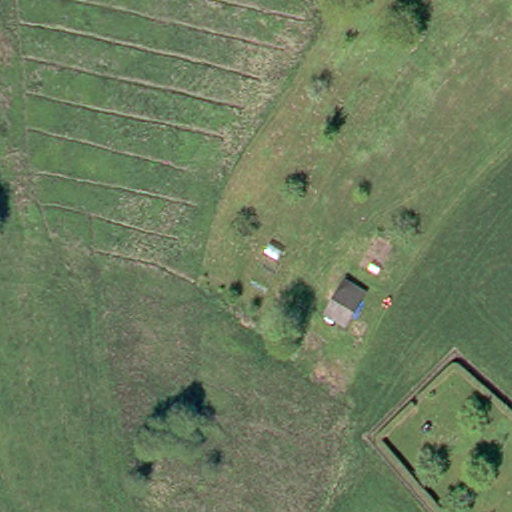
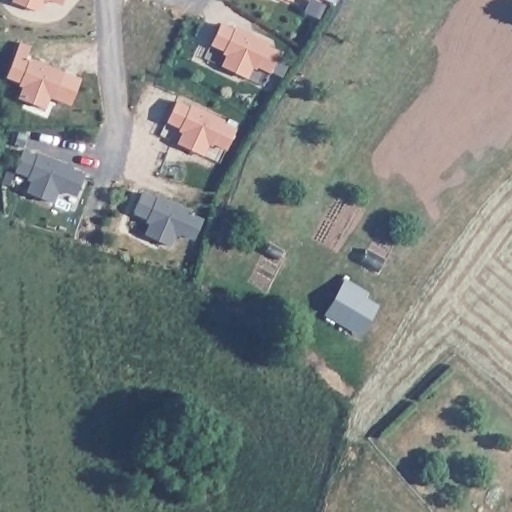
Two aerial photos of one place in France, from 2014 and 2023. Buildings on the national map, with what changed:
new [(43,0),(38,11),(9,0),(47,0),(46,2),(43,0)]
new [(54,0),(61,0),(61,2),(54,0)]
new [(235,25),(236,23),(269,37),(268,40),(278,50),(270,69),(256,63),(255,66),(229,49),(224,47),(225,44),(213,38),(221,20),(235,25)]
new [(33,46),(29,56),(64,70),(53,97),(50,96),(45,106),(19,96),(23,86),(18,85),(20,81),(6,76),(19,40),(33,46)]
new [(250,63),(244,76),(223,62),(229,49),(250,63)]
new [(180,129),(181,127),(167,121),(178,99),(189,107),(190,105),(225,119),(224,122),(237,128),(229,147),(216,141),(214,144),(209,142),(204,154),(180,144),(185,131),(180,129)]
new [(37,154),(38,152),(75,166),(74,169),(84,174),(75,195),(61,189),(60,194),(58,193),(54,202),(27,191),(31,181),(27,178),(28,175),(15,169),(23,148),(37,154)]
new [(156,196),(157,194),(191,209),(189,213),(202,219),(194,239),(180,233),(179,237),(174,235),(170,244),(145,233),(150,223),(144,220),(146,217),(133,212),(142,190),(156,196)]
unchanged [(343,280),(361,290),(346,316),(328,305),(343,280)]

